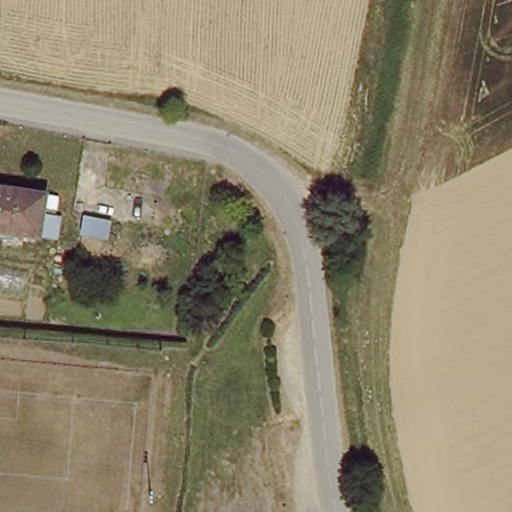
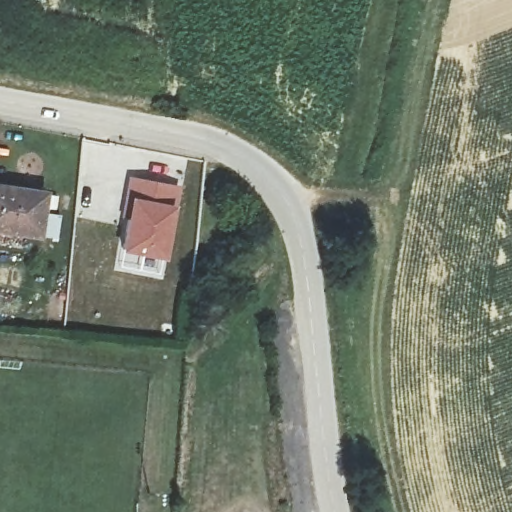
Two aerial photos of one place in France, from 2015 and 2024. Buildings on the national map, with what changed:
new [(174,211),(165,261),(120,252),(130,199),(125,199),(129,179),(181,188),(174,211)]
unchanged [(40,241),(0,236),(0,192),(43,196),(40,241)]

